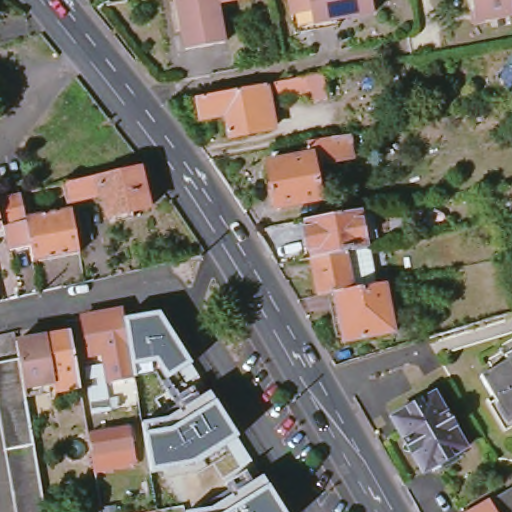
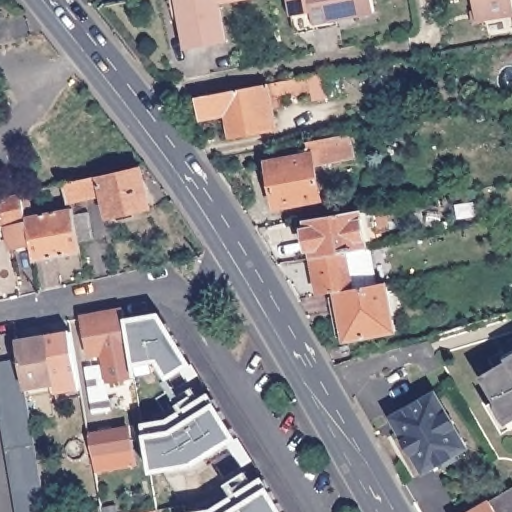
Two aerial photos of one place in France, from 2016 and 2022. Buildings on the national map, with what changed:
unchanged [(218,2),(225,42),(185,50),(177,0),(231,0),(218,2)]
unchanged [(312,14),(293,17),(290,0),(373,0),(374,7),(314,19),(312,14)]
unchanged [(475,12),(473,0),(512,0),(512,1),(512,14),(482,19),(482,11),(475,12)]
unchanged [(239,89),(239,90),(265,85),(322,74),(327,98),(312,101),(310,91),(287,96),(289,105),(270,109),(274,129),(230,137),(225,114),(200,119),(197,97),(239,89)]
unchanged [(355,134),(359,157),(319,165),(325,200),(280,207),(272,162),(315,155),(312,142),(355,134)]
unchanged [(72,182),(140,167),(150,208),(107,217),(102,194),(70,201),(67,202),(62,184),(72,182)]
unchanged [(92,240),(79,242),(80,252),(33,261),(30,246),(25,217),(20,193),(26,192),(30,216),(72,209),(74,215),(89,213),(92,240)]
unchanged [(20,193),(25,217),(30,246),(10,250),(7,235),(0,236),(0,198),(20,193)]
unchanged [(360,210),(367,248),(312,258),(305,220),(360,210)]
unchanged [(367,248),(370,247),(377,284),(335,292),(319,295),(312,258),(367,248)]
unchanged [(377,284),(385,282),(395,332),(344,341),(335,292),(377,284)]
unchanged [(122,310),(135,378),(107,382),(102,353),(90,356),(82,317),(122,310)]
unchanged [(172,379),(158,360),(136,364),(127,321),(163,315),(194,365),(172,379)]
unchanged [(71,332),(80,387),(55,392),(54,383),(55,382),(47,336),(71,332)]
unchanged [(47,336),(55,382),(54,383),(25,388),(20,358),(17,341),(47,336)]
unchanged [(504,356),(512,351),(512,421),(500,427),(487,405),(495,401),(480,376),(507,361),(504,356)]
unchanged [(20,358),(25,388),(45,512),(16,512),(0,417),(0,362),(20,358)]
unchanged [(99,366),(100,365),(107,400),(118,398),(120,407),(92,414),(86,376),(99,366)]
unchanged [(435,393),(466,447),(427,470),(420,468),(392,417),(435,393)]
unchanged [(195,466),(155,472),(148,434),(146,427),(175,421),(214,398),(219,404),(239,437),(195,466)]
unchanged [(128,428),(134,463),(95,471),(89,435),(128,428)]
unchanged [(267,480),(274,489),(288,512),(211,512),(215,512),(267,480)]
unchanged [(512,512),(461,512),(512,482),(512,512)]
unchanged [(101,512),(81,512),(81,511),(100,507),(101,512)]
unchanged [(156,512),(146,512),(155,510),(156,512)]

